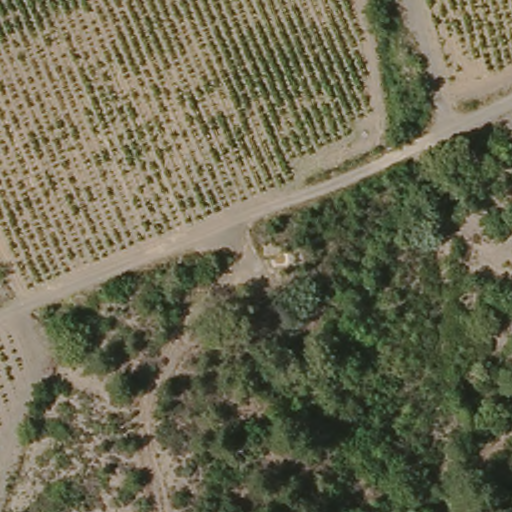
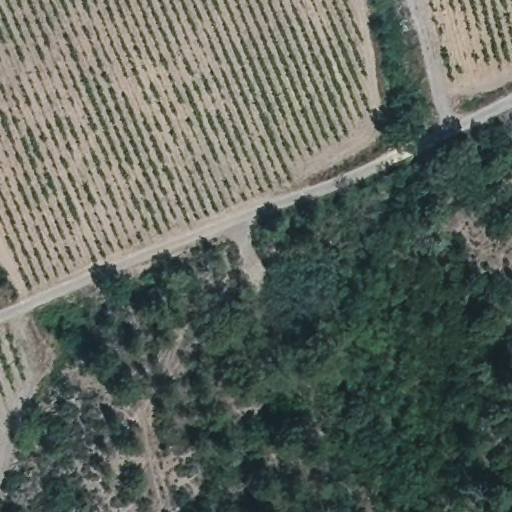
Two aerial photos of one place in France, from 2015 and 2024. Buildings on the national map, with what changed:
unchanged [(462,168),(470,183),(457,192),(447,178),(462,168)]

